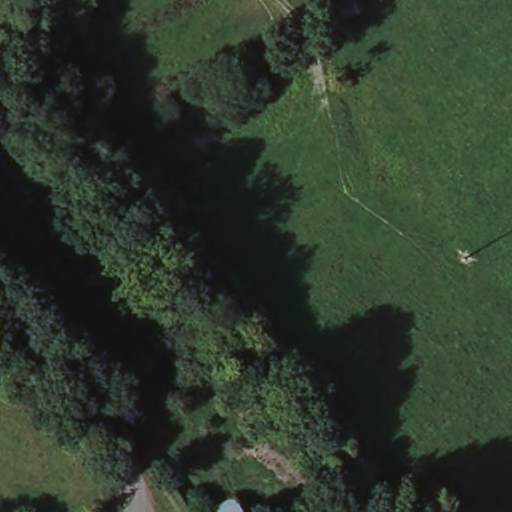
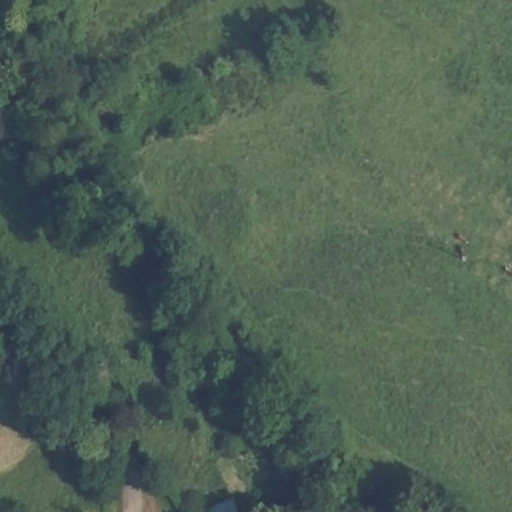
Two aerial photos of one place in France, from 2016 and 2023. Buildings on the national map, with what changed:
unchanged [(239,512),(194,512),(231,495),(239,512)]

